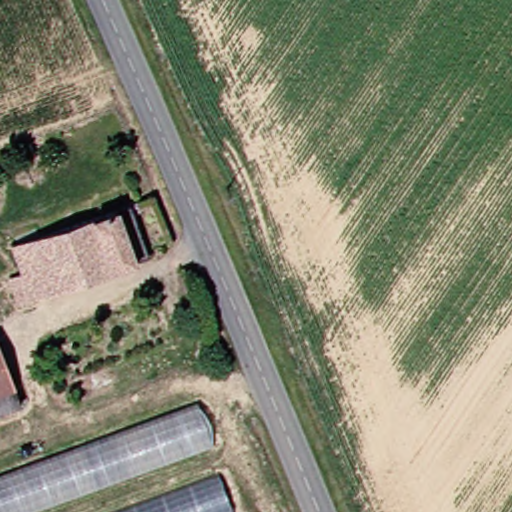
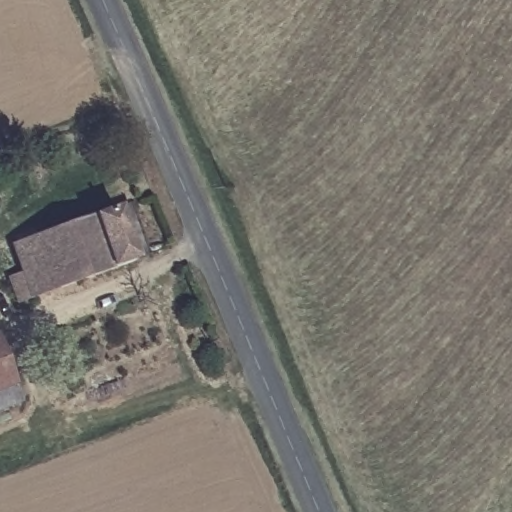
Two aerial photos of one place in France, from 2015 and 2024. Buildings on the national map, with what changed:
unchanged [(0,270),(11,267),(4,242),(115,205),(122,225),(133,257),(118,262),(2,301),(0,295),(0,270)]
unchanged [(0,405),(0,378),(10,401),(0,405)]
demolished [(14,512),(0,512),(0,468),(190,398),(207,440),(14,512)]
demolished [(219,512),(92,512),(210,469),(225,510),(219,512)]

